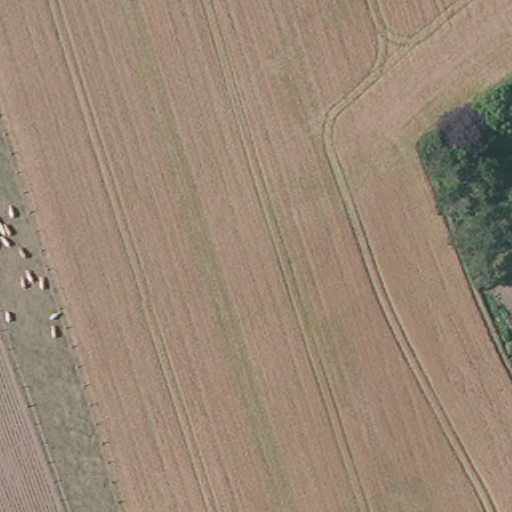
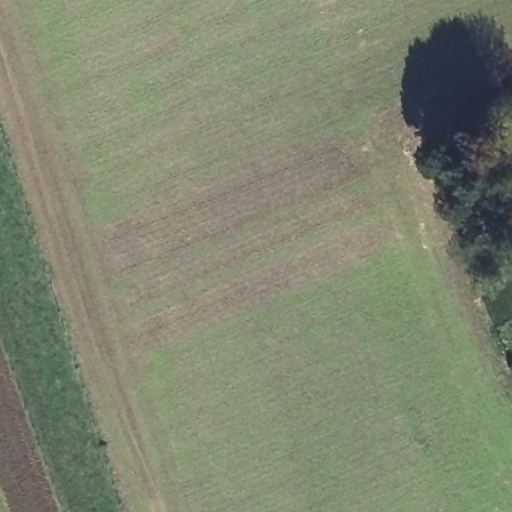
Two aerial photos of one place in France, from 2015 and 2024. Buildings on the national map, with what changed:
[]

